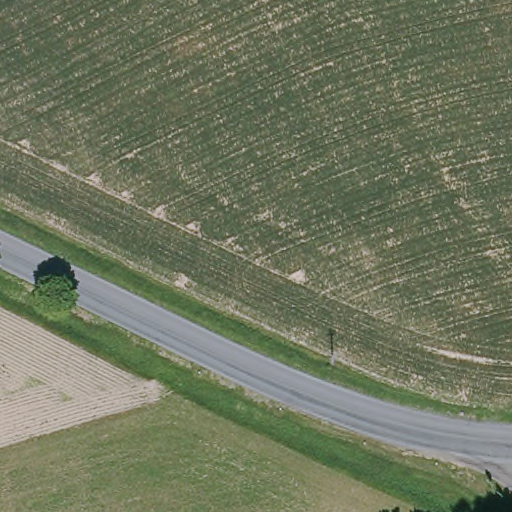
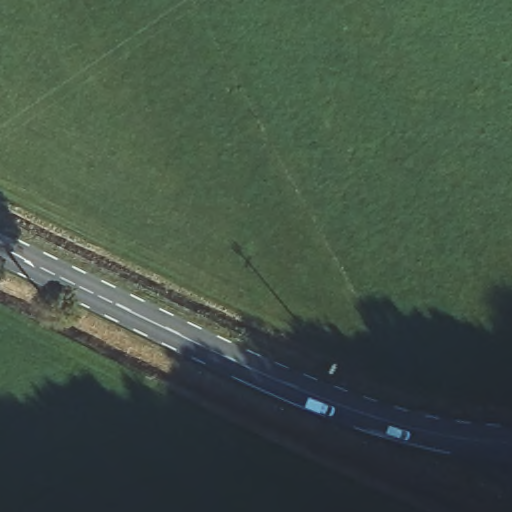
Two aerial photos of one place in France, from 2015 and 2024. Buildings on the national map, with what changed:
[]

